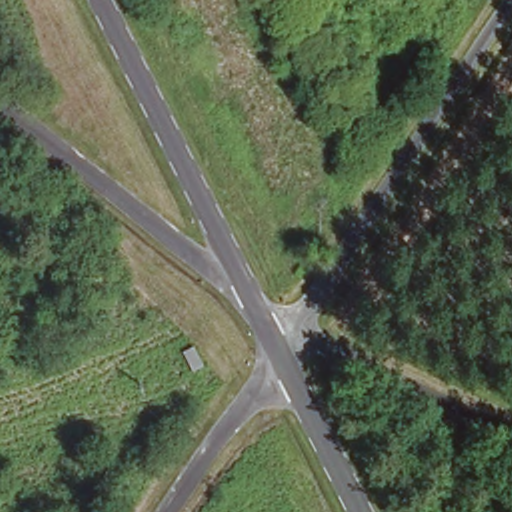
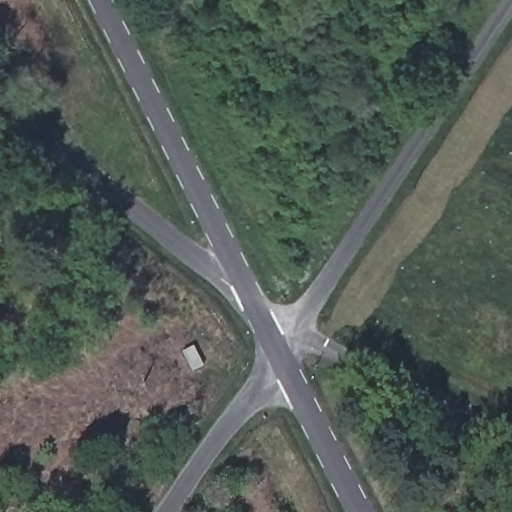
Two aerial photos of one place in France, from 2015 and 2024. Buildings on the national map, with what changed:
unchanged [(195,391),(177,380),(183,369),(203,379),(195,391)]

